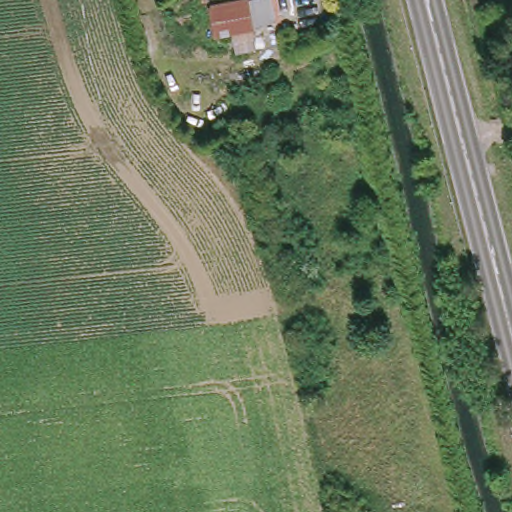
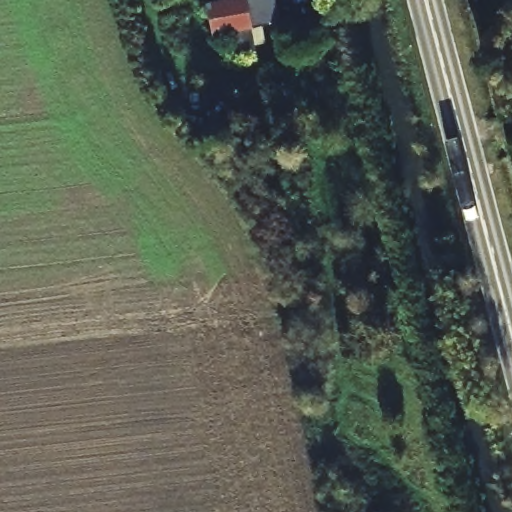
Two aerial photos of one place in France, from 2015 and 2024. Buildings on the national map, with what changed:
unchanged [(213,32),(208,0),(252,0),(257,21),(213,32)]

